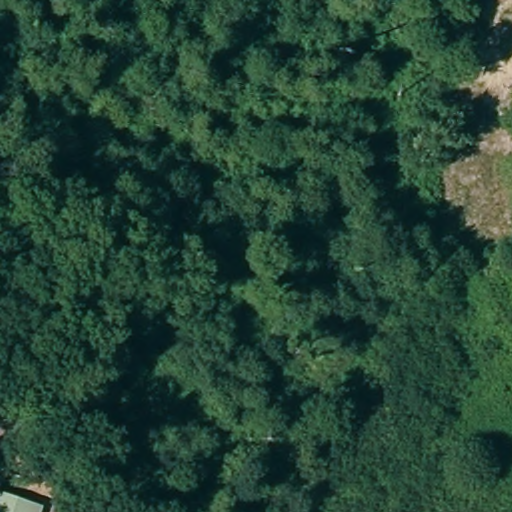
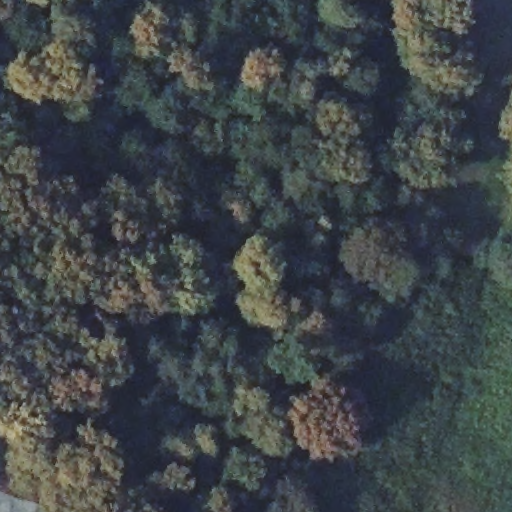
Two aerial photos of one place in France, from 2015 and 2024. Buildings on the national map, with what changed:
unchanged [(34,512),(0,512),(0,494),(37,504),(34,512)]

